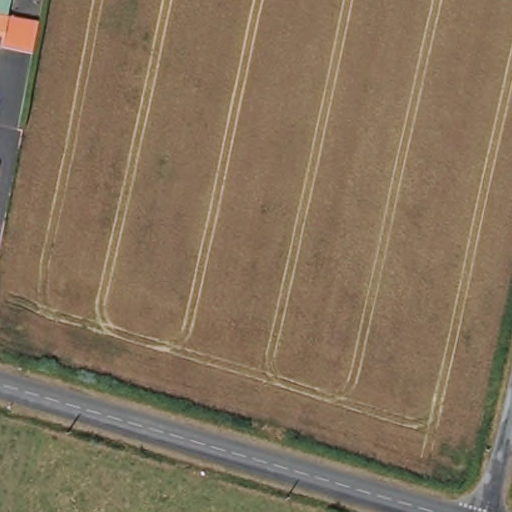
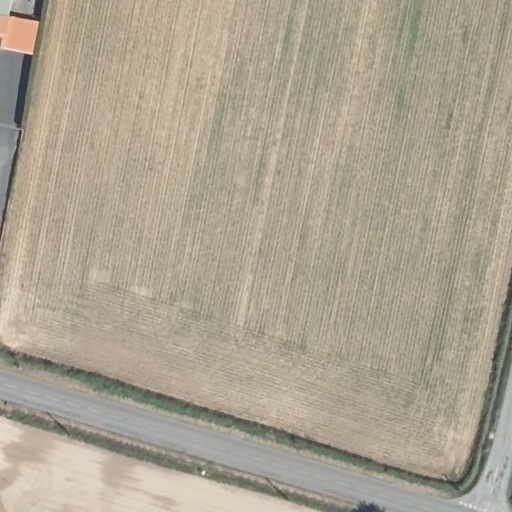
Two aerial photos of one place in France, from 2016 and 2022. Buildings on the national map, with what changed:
unchanged [(6,20),(0,19),(0,0),(8,0),(10,0),(6,20)]
unchanged [(0,50),(0,19),(6,20),(0,50)]

